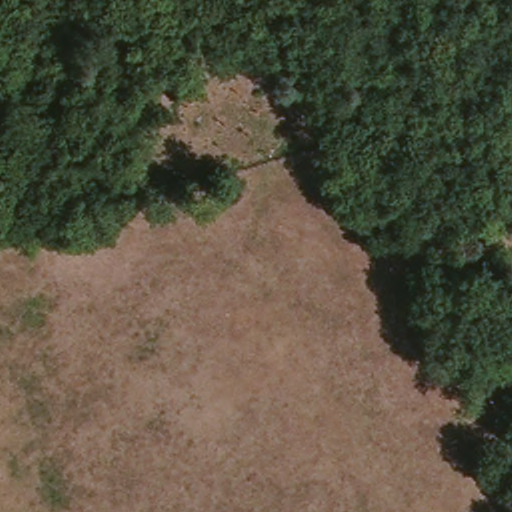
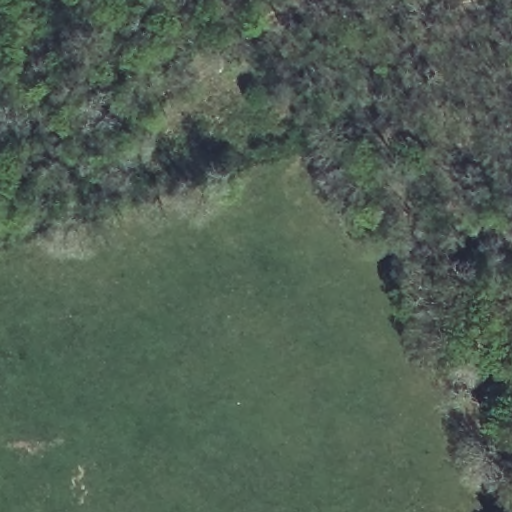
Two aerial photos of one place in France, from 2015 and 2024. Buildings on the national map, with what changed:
[]

